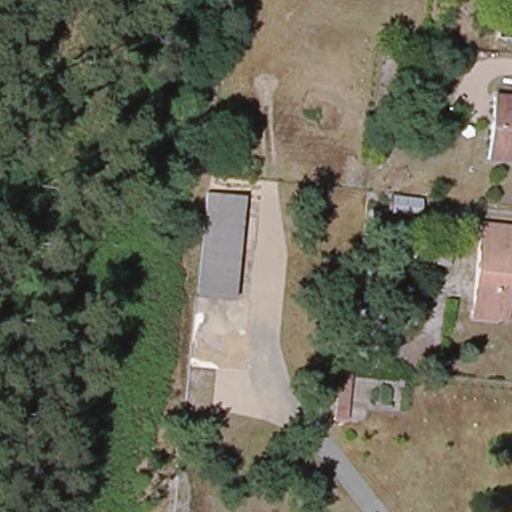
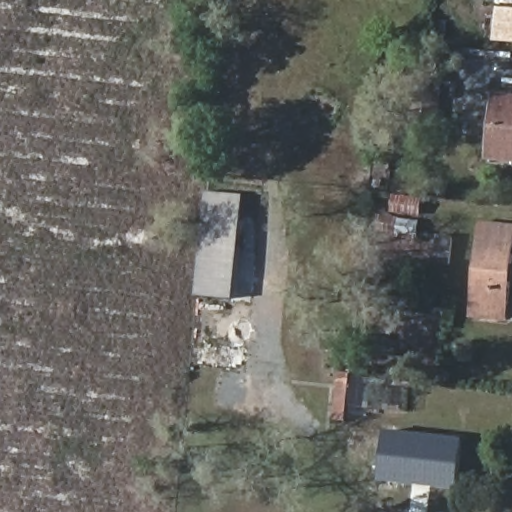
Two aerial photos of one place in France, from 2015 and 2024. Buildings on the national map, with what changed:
unchanged [(498,44),(501,12),(512,13),(512,45),(498,44)]
unchanged [(425,126),(427,91),(454,93),(451,128),(425,126)]
unchanged [(492,161),(499,99),(512,101),(512,163),(492,161)]
unchanged [(195,296),(206,189),(247,195),(234,302),(195,296)]
unchanged [(421,219),(395,215),(392,198),(425,199),(421,219)]
unchanged [(475,316),(476,301),(484,227),(512,231),(512,263),(507,303),(506,318),(475,316)]
unchanged [(449,257),(452,232),(464,233),(461,258),(449,257)]
new [(463,439),(457,489),(380,481),(386,431),(463,439)]

